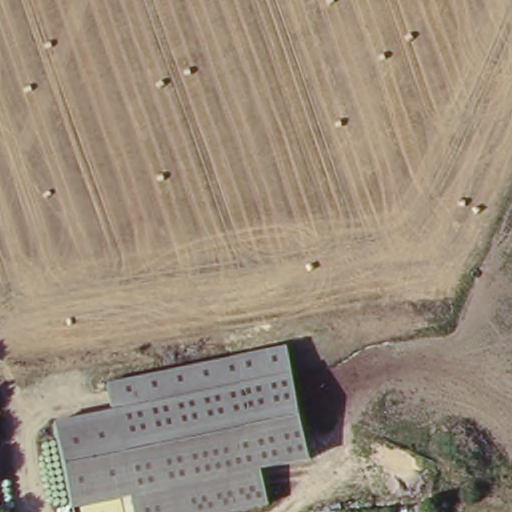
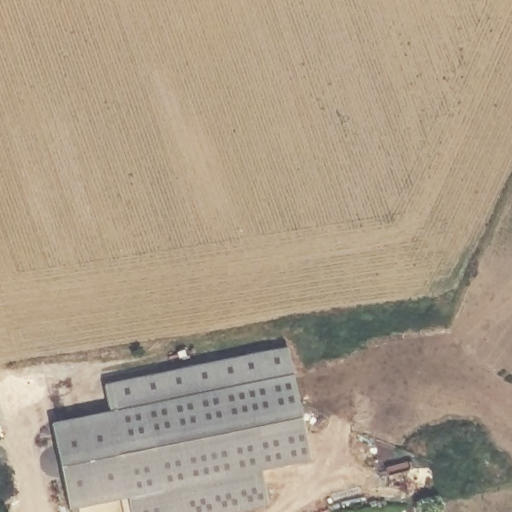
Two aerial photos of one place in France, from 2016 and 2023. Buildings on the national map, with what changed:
unchanged [(112,415),(106,388),(291,354),(312,468),(267,476),(273,508),(254,512),(131,512),(129,503),(84,512),(72,512),(56,425),(112,415)]

